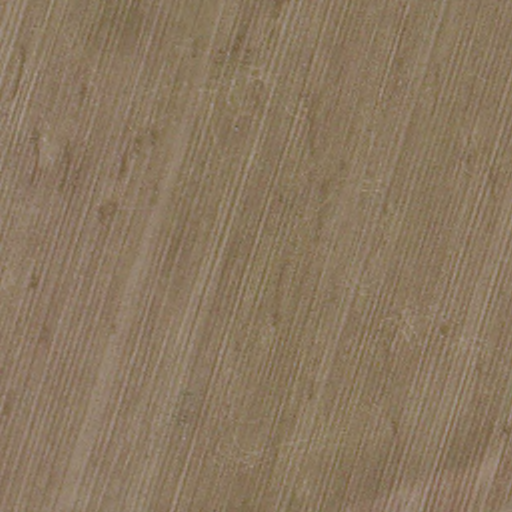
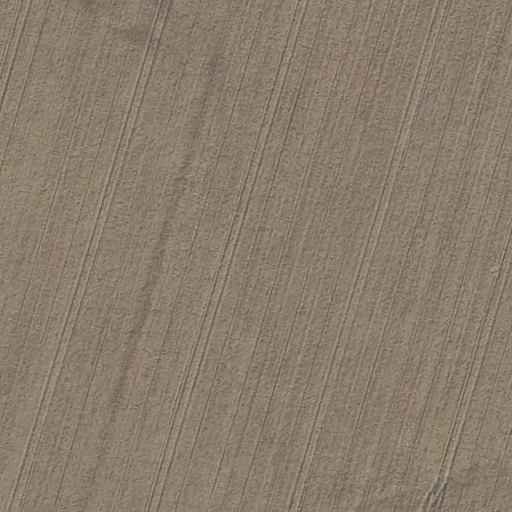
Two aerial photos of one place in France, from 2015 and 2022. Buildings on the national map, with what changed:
[]

